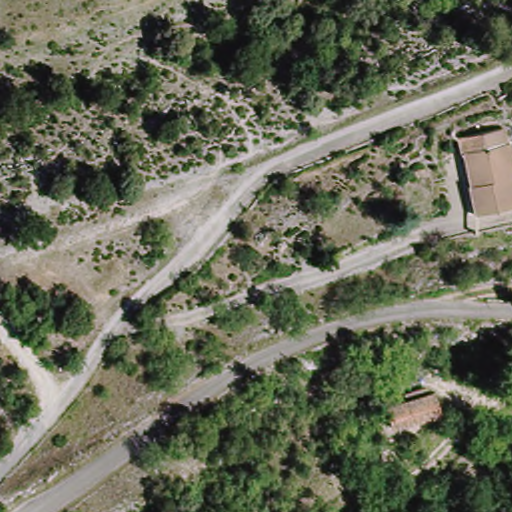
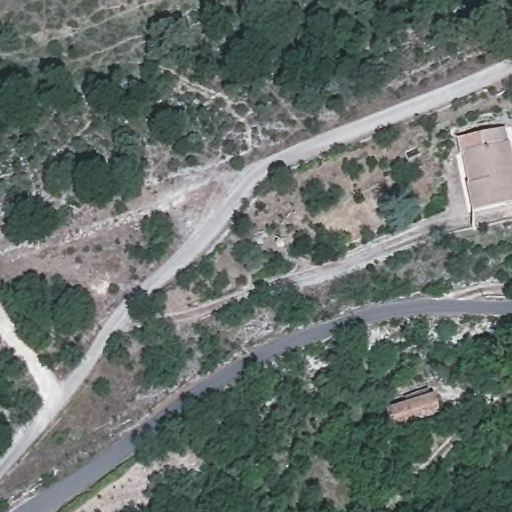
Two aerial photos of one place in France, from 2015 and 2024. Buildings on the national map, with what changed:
unchanged [(458,142),(503,127),(512,154),(512,202),(480,211),(472,185),(477,184),(467,154),(462,155),(458,142)]
unchanged [(437,387),(445,411),(395,427),(387,404),(437,387)]

